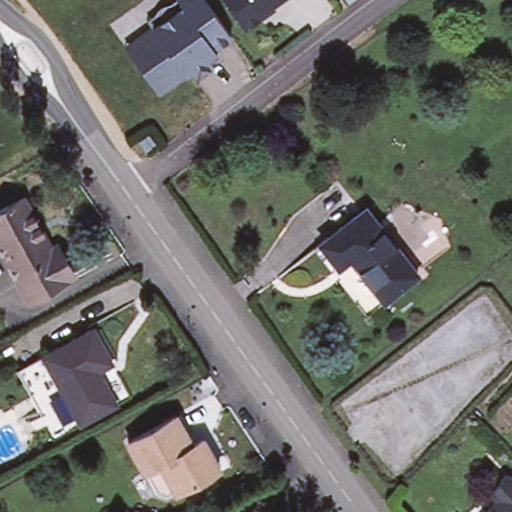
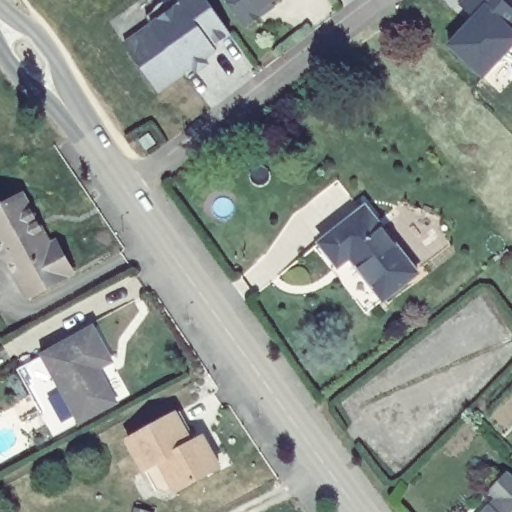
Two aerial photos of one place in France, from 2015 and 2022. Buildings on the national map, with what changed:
unchanged [(149,77),(135,57),(125,44),(129,41),(152,25),(146,17),(170,0),(207,0),(211,6),(230,34),(213,45),(217,50),(205,58),(208,63),(197,70),(194,65),(162,88),(158,91),(149,77)]
unchanged [(258,16),(248,24),(242,22),(226,0),(273,0),(270,1),(273,5),(258,16)]
new [(447,45),(470,21),(457,5),(462,0),(505,0),(512,6),(512,50),(483,80),(447,45)]
unchanged [(55,243),(73,272),(27,298),(0,249),(0,210),(21,199),(50,246),(55,243)]
unchanged [(417,269),(385,296),(351,255),(340,265),(321,241),(365,205),(417,269)]
unchanged [(118,351),(105,361),(122,393),(89,411),(52,347),(100,320),(118,351)]
unchanged [(89,411),(62,426),(27,361),(52,347),(89,411)]
unchanged [(158,489),(147,467),(145,469),(131,441),(180,413),(192,436),(187,440),(192,446),(205,437),(222,465),(177,488),(175,486),(167,491),(158,489)]
unchanged [(482,512),(494,500),(486,491),(501,475),(512,485),(512,512),(482,512)]

